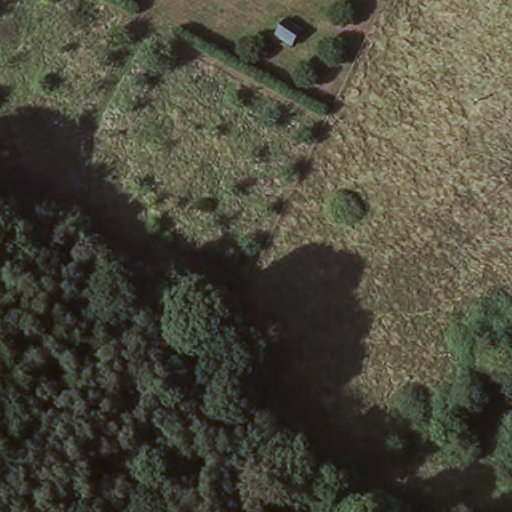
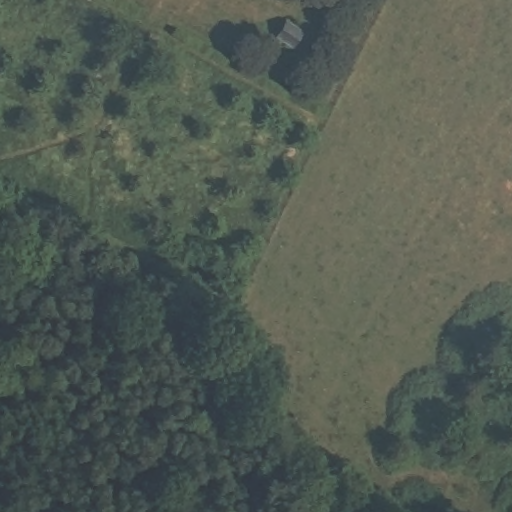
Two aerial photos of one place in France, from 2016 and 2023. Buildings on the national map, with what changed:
unchanged [(255,36),(265,18),(295,34),(286,50),(255,36)]

